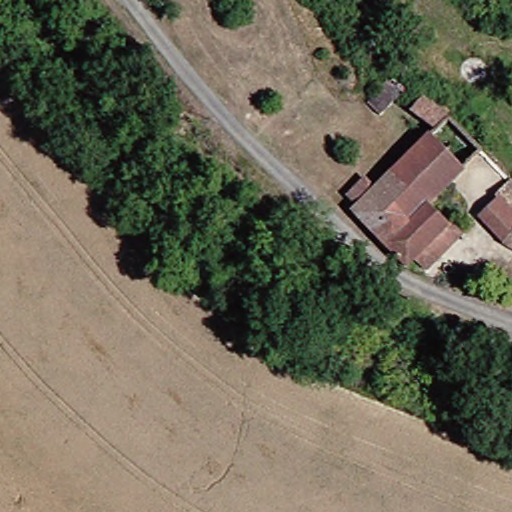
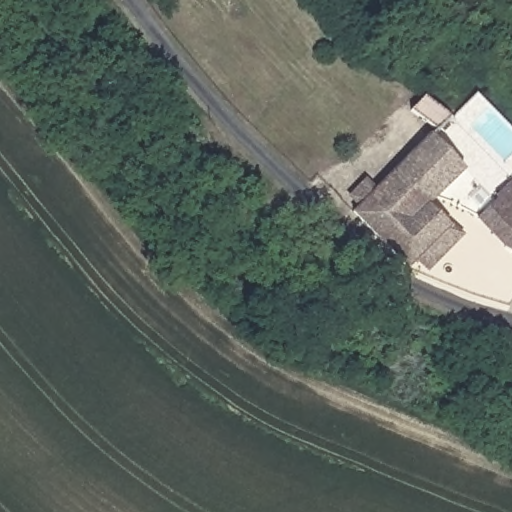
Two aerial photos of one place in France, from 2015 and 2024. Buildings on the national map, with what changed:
unchanged [(397,90),(377,111),(365,101),(382,77),(397,90)]
unchanged [(435,267),(425,256),(414,267),(357,209),(424,135),(402,113),(417,99),(445,124),(427,141),(462,175),(426,209),(451,231),(460,243),(435,267)]
unchanged [(509,176),(512,180),(512,243),(510,241),(482,215),(498,200),(493,195),(509,176)]

